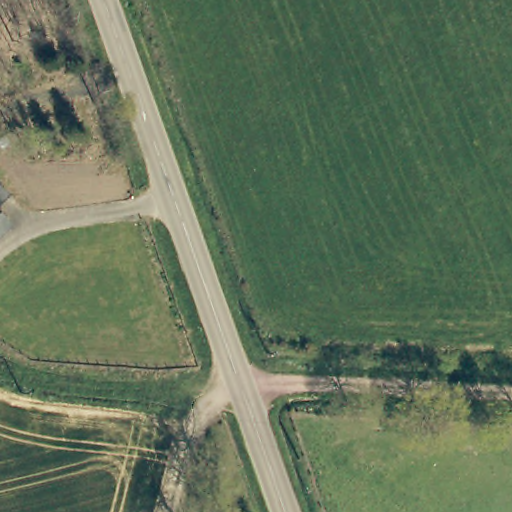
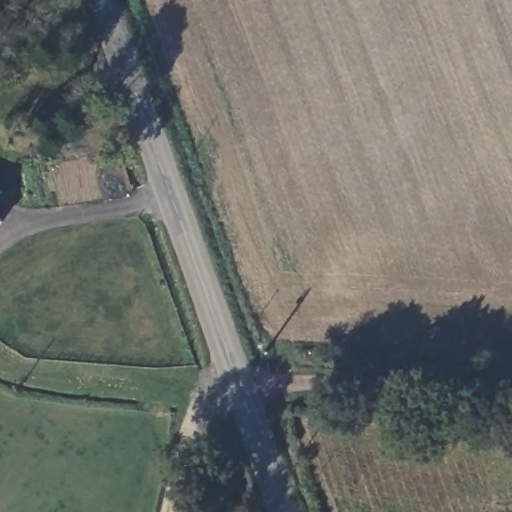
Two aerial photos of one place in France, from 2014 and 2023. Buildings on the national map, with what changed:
unchanged [(0,200),(0,187),(6,194),(0,200)]
unchanged [(0,226),(0,217),(5,222),(0,226)]

